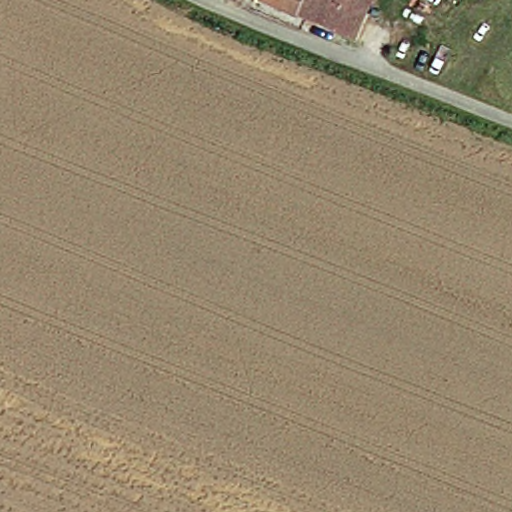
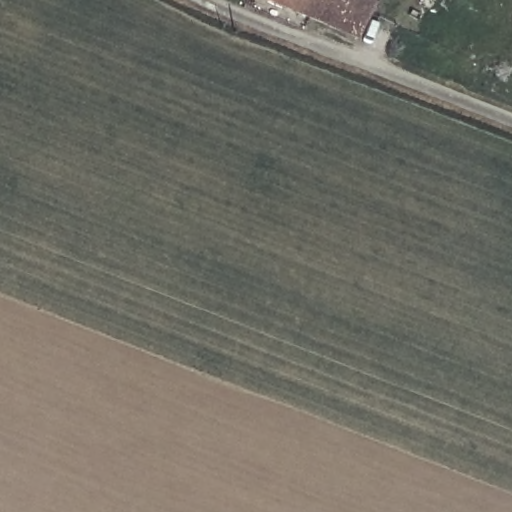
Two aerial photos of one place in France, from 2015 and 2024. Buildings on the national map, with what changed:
unchanged [(363,19),(355,41),(248,0),(362,0),(357,15),(363,19)]

